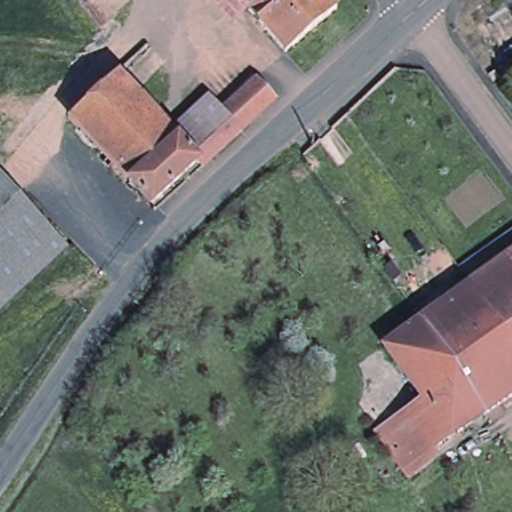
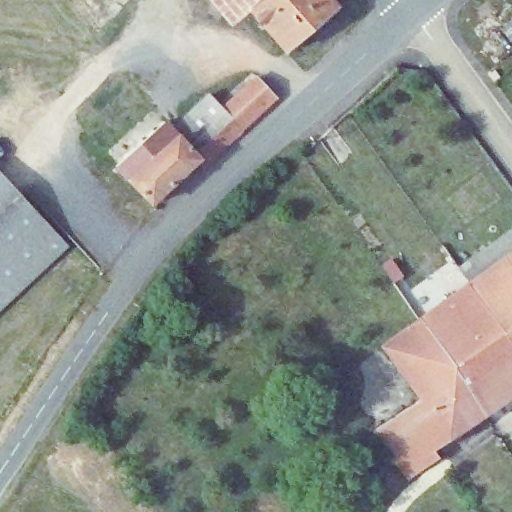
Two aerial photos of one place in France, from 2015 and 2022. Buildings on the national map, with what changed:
unchanged [(230,24),(209,0),(240,0),(247,9),(230,24)]
unchanged [(247,9),(240,0),(257,0),(247,9)]
unchanged [(335,7),(285,51),(247,9),(257,0),(328,0),(335,7)]
unchanged [(493,66),(497,73),(492,77),(487,70),(493,66)]
demolished [(117,75),(165,125),(117,169),(70,119),(117,75)]
unchanged [(197,162),(152,205),(130,182),(117,169),(165,125),(175,136),(205,107),(218,122),(252,89),(268,105),(233,138),(210,160),(202,167),(197,162)]
unchanged [(67,247),(0,310),(0,175),(67,247)]
unchanged [(457,270),(512,230),(512,254),(468,285),(457,270)]
unchanged [(512,352),(468,285),(512,254),(512,352)]
unchanged [(512,352),(512,384),(485,343),(450,367),(418,321),(468,285),(512,352)]
unchanged [(417,322),(418,321),(450,367),(485,415),(468,426),(430,372),(408,386),(382,348),(417,322)]
unchanged [(512,384),(512,397),(485,415),(450,367),(485,343),(512,384)]
unchanged [(418,400),(408,386),(430,372),(468,426),(432,451),(401,412),(418,400)]
unchanged [(437,459),(407,480),(375,431),(401,412),(432,451),(437,459)]

